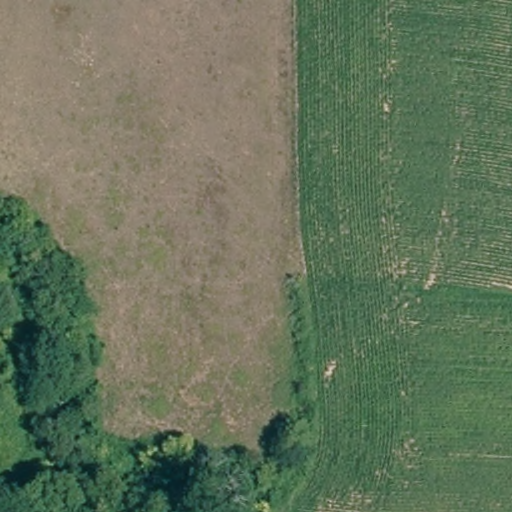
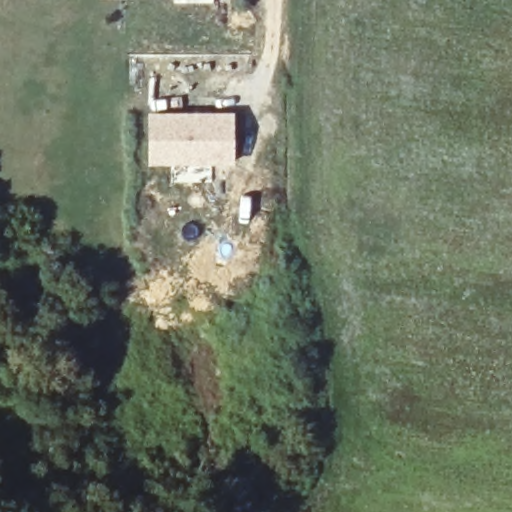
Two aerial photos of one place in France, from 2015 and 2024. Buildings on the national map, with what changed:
new [(235,111),(234,164),(149,165),(150,111),(235,111)]

